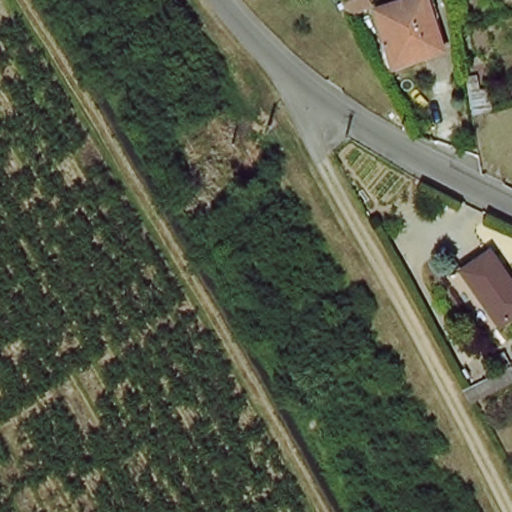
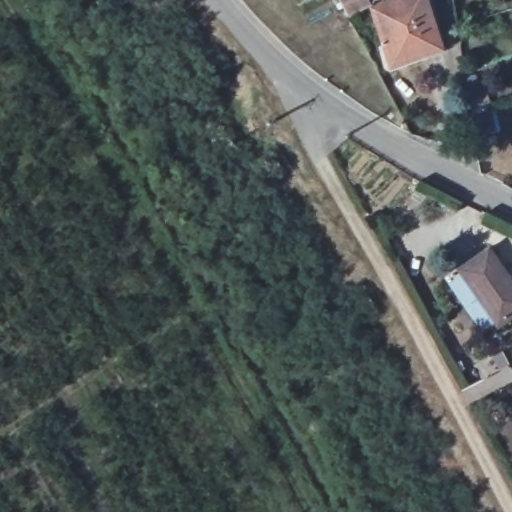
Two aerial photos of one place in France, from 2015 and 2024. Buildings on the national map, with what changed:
unchanged [(355,14),(347,0),(370,0),(372,5),(355,14)]
unchanged [(380,11),(420,0),(429,0),(441,50),(393,64),(380,11)]
unchanged [(512,283),(512,322),(497,330),(456,261),(487,244),(512,283)]

